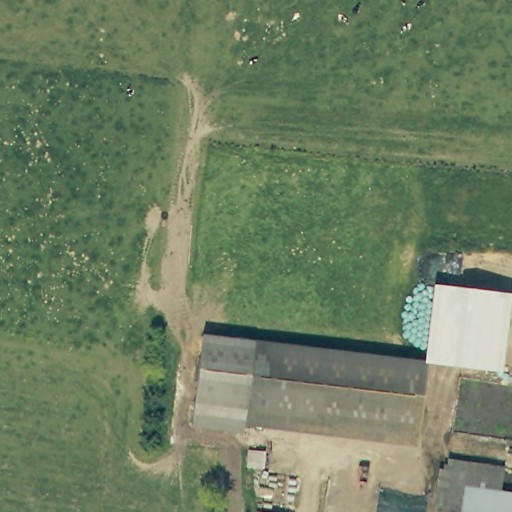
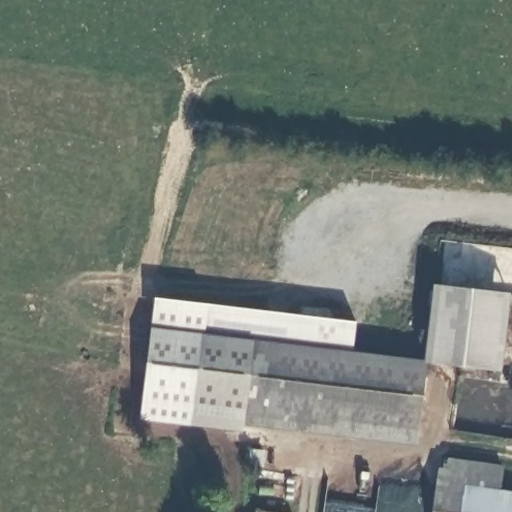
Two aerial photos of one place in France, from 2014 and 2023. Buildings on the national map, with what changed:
unchanged [(500,370),(422,363),(431,282),(508,294),(500,370)]
new [(352,351),(250,337),(201,330),(189,420),(189,425),(139,418),(154,297),(357,322),(352,351)]
unchanged [(413,427),(241,405),(238,426),(189,420),(201,330),(250,337),(422,360),(422,363),(413,427)]
unchanged [(413,427),(410,448),(238,426),(241,405),(413,427)]
unchanged [(441,458),(503,468),(499,495),(464,489),(463,495),(436,491),(441,458)]
unchanged [(464,489),(499,495),(512,496),(512,512),(461,512),(463,495),(464,489)]
unchanged [(463,495),(461,512),(433,512),(436,491),(463,495)]

